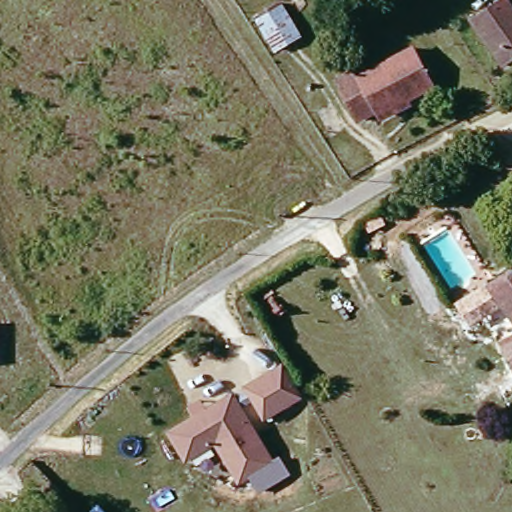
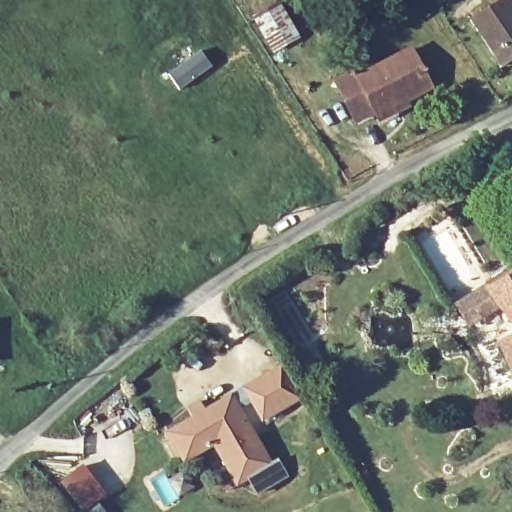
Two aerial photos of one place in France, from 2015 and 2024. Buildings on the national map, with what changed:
unchanged [(275,44),(256,13),(277,0),(278,0),(297,32),(275,44)]
unchanged [(512,60),(502,67),(470,21),(501,0),(506,0),(512,8),(512,60)]
unchanged [(376,110),(374,106),(355,115),(335,76),(354,66),(357,71),(411,44),(431,82),(376,110)]
unchanged [(512,268),(512,326),(488,284),(512,268)]
unchanged [(512,335),(512,375),(498,343),(512,335)]
unchanged [(244,388),(281,367),(300,398),(263,419),(244,388)]
unchanged [(239,483),(215,444),(185,462),(169,434),(231,396),(272,463),(239,483)]
new [(84,466),(93,478),(106,495),(86,509),(65,480),(84,466)]

